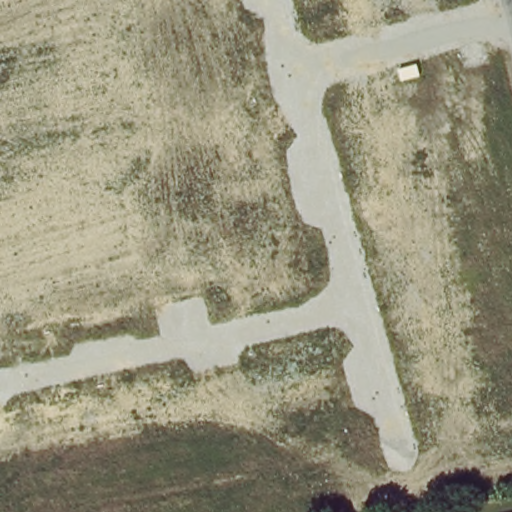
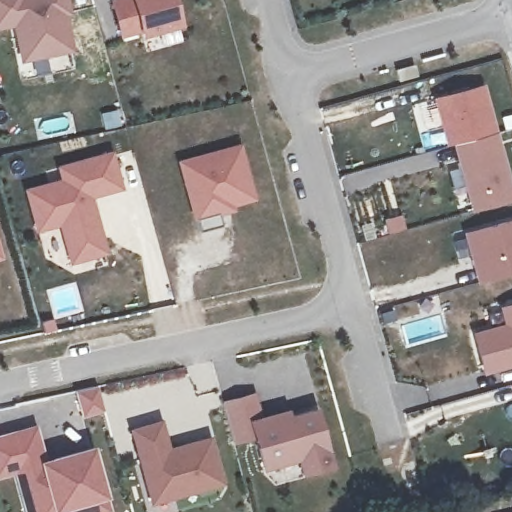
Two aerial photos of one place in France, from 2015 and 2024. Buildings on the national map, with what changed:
new [(21,50),(22,32),(0,31),(0,0),(65,0),(63,52),(21,50)]
new [(171,0),(178,23),(121,38),(113,5),(130,0),(171,0)]
new [(482,83),(512,187),(512,201),(472,213),(452,144),(445,145),(432,98),(482,83)]
new [(239,151),(253,203),(217,212),(221,230),(200,236),(181,167),(239,151)]
new [(63,185),(60,172),(110,158),(118,191),(89,199),(103,256),(70,265),(60,226),(36,232),(27,195),(63,185)]
new [(463,236),(461,231),(512,217),(512,273),(477,282),(469,257),(458,260),(452,239),(463,236)]
new [(502,322),(497,306),(512,303),(512,366),(484,373),(472,332),(502,322)]
new [(81,417),(80,410),(75,395),(95,391),(100,406),(101,413),(81,417)]
new [(255,395),(261,420),(252,422),(256,436),(233,442),(223,403),(255,395)]
new [(303,471),(299,451),(286,454),(287,459),(265,465),(256,436),(252,422),(261,420),(275,416),(279,430),(293,426),(291,418),(315,411),(329,463),(303,471)]
new [(43,458),(92,446),(105,497),(110,512),(24,512),(13,474),(0,477),(0,435),(36,425),(43,458)]
new [(160,428),(167,456),(208,445),(220,488),(150,507),(130,436),(160,428)]

